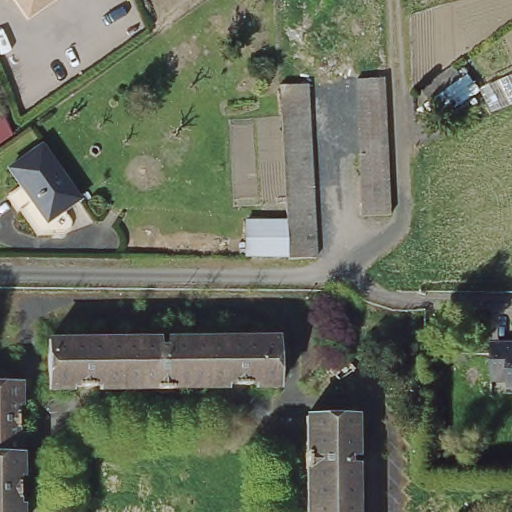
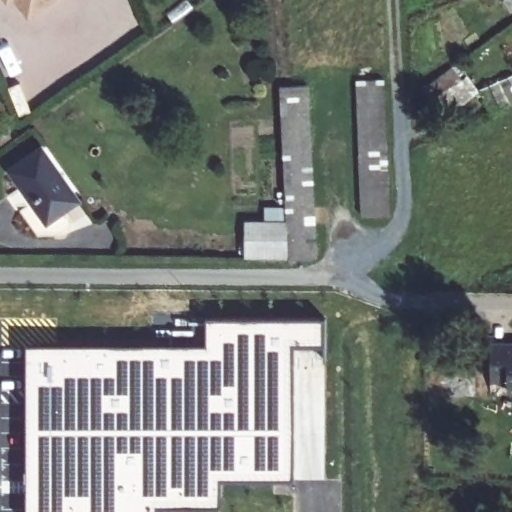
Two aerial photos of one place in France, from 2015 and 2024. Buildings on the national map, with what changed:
unchanged [(9,0),(8,1),(7,0),(9,0)]
unchanged [(25,9),(19,0),(52,0),(35,11),(25,9)]
unchanged [(467,77),(433,99),(423,80),(456,58),(467,77)]
unchanged [(363,215),(356,80),(383,78),(389,214),(363,215)]
unchanged [(312,79),(321,252),(293,254),(293,249),(291,217),(283,80),(312,79)]
unchanged [(15,132),(0,143),(0,123),(8,117),(15,132)]
unchanged [(7,170),(45,143),(82,199),(47,225),(7,170)]
unchanged [(252,252),(250,218),(291,217),(293,249),(252,252)]
new [(207,346),(207,319),(325,319),(323,344),(294,345),(292,479),(221,479),(220,505),(157,505),(157,512),(27,512),(27,346),(207,346)]
demolished [(170,347),(181,346),(181,338),(289,337),(289,386),(267,387),(267,382),(237,383),(237,387),(112,388),(112,384),(82,385),(82,388),(62,388),(62,340),(170,338),(170,347)]
unchanged [(512,346),(512,386),(508,386),(508,375),(494,375),(493,345),(512,346)]
demolished [(18,401),(18,430),(23,430),(23,471),(18,471),(18,500),(23,500),(23,512),(0,512),(0,379),(23,378),(23,400),(18,401)]
demolished [(362,449),(355,450),(355,459),(363,460),(363,512),(314,512),(314,410),(363,412),(362,449)]

